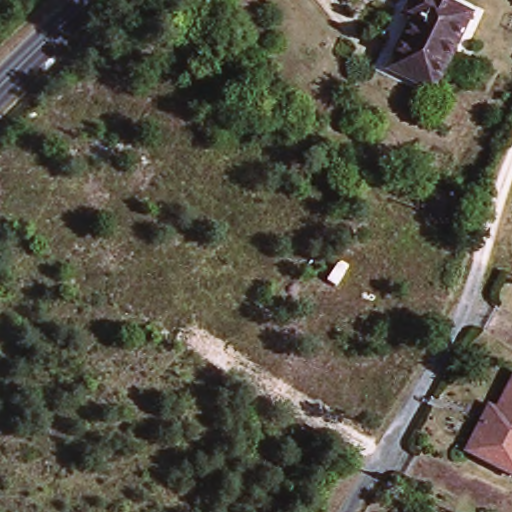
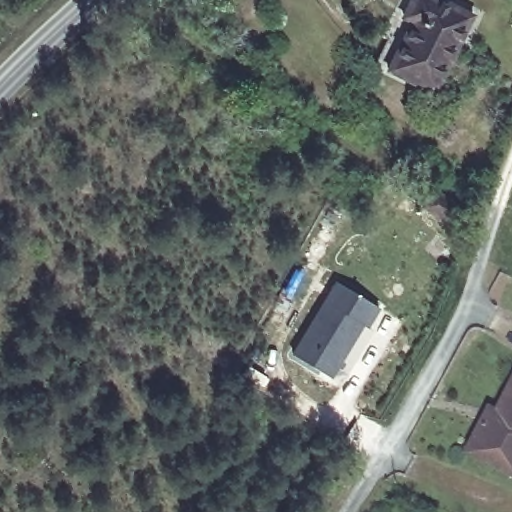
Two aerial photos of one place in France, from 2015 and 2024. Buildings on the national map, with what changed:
unchanged [(470,17),(433,92),(389,71),(412,21),(402,17),(410,0),(436,0),(470,17)]
unchanged [(435,186),(460,205),(445,224),(422,205),(435,186)]
new [(363,326),(332,377),(292,352),(335,282),(378,308),(367,327),(363,326)]
unchanged [(482,426),(490,411),(498,415),(512,387),(512,478),(467,456),(482,426)]

